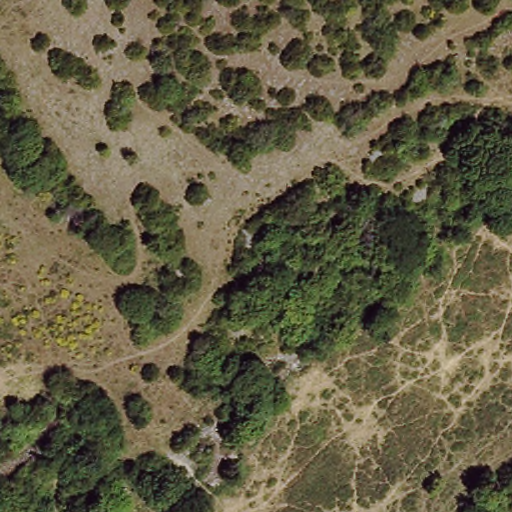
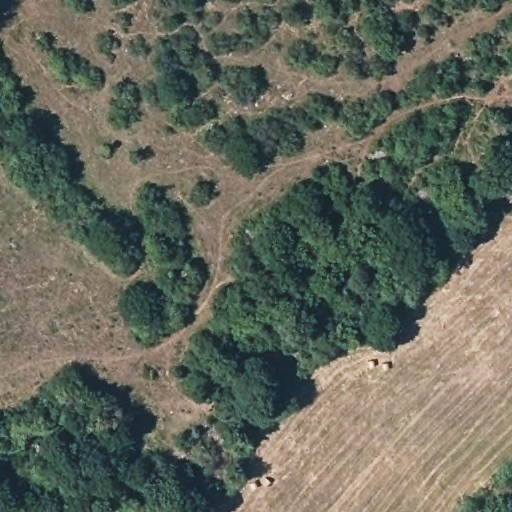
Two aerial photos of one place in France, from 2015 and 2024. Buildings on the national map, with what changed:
unchanged [(0,466),(0,457),(28,430),(46,451),(11,482),(0,466)]

